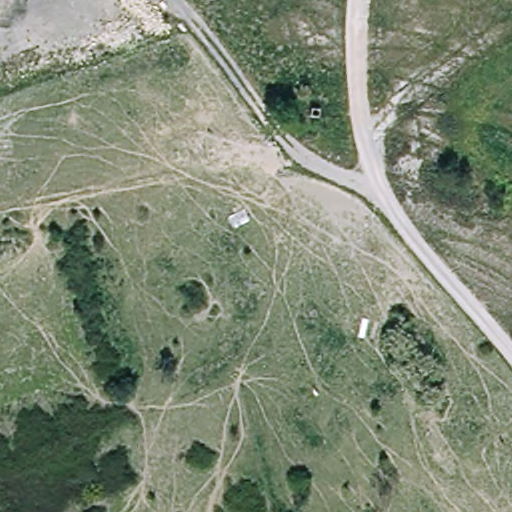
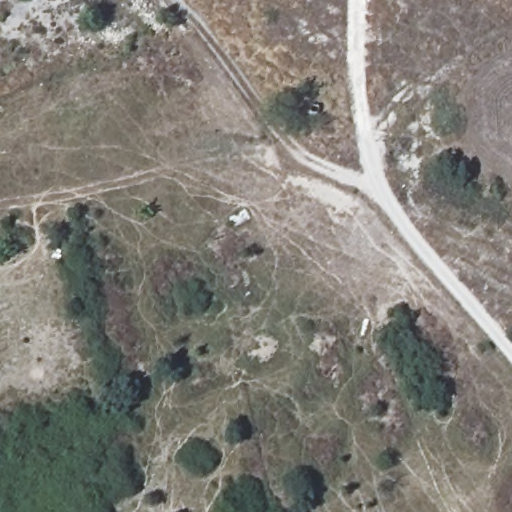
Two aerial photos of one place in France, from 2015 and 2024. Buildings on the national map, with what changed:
[]

